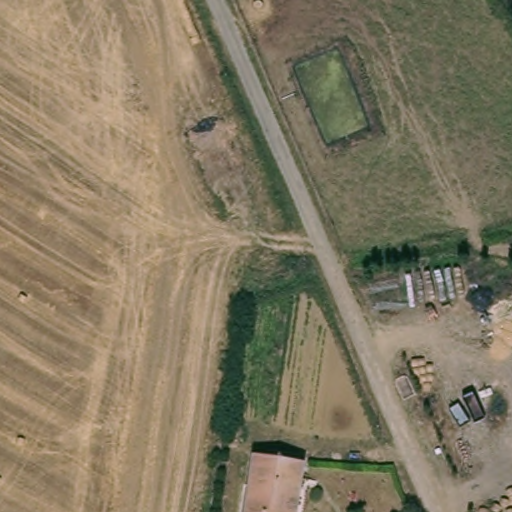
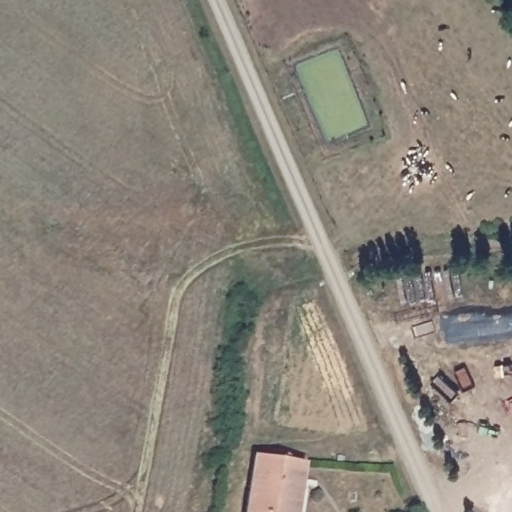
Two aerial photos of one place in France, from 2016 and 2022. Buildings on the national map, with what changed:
unchanged [(256,454),(307,463),(300,512),(248,512),(256,454)]

